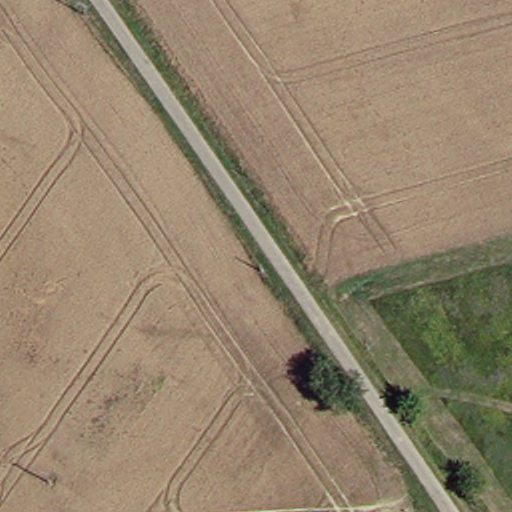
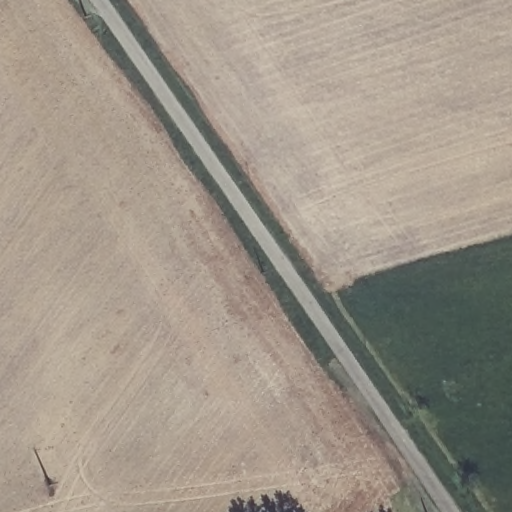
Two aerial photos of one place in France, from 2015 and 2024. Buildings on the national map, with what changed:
[]

